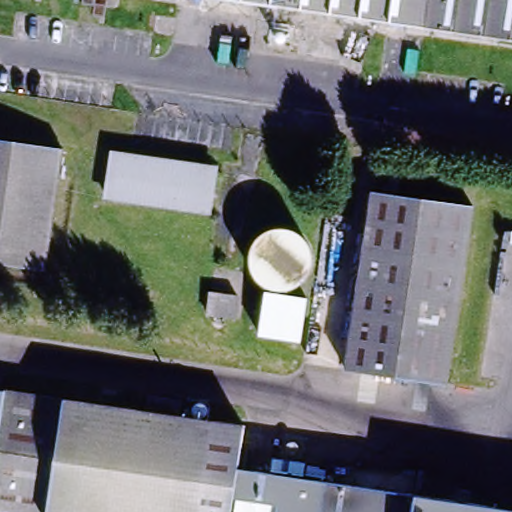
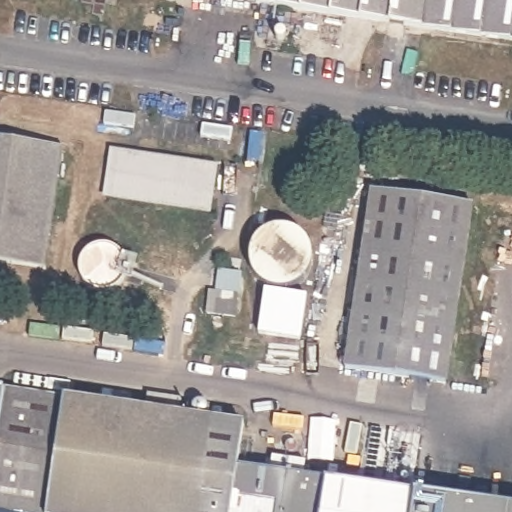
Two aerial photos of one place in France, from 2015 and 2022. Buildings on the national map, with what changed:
unchanged [(372,16),(282,3),(258,0),(512,0),(512,37),(415,23),(372,16)]
unchanged [(51,216),(43,270),(0,264),(0,142),(61,151),(51,216)]
unchanged [(210,167),(203,211),(104,195),(110,151),(210,167)]
unchanged [(440,377),(339,363),(366,188),(469,203),(440,377)]
unchanged [(236,200),(226,259),(210,256),(220,197),(236,200)]
unchanged [(306,307),(301,347),(256,340),(261,302),(306,307)]
unchanged [(233,432),(227,471),(416,499),(414,512),(0,512),(0,396),(233,432)]
unchanged [(495,512),(414,512),(416,499),(495,512)]

